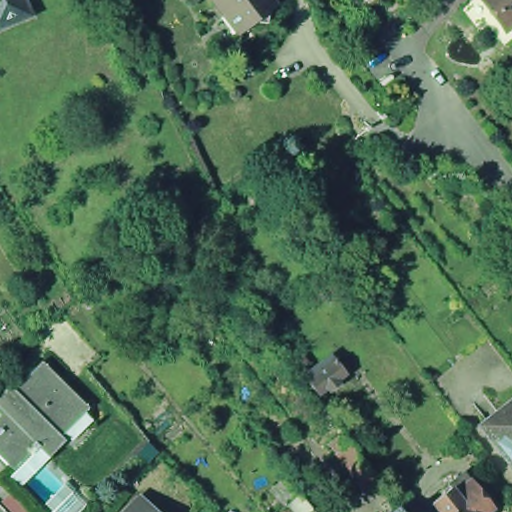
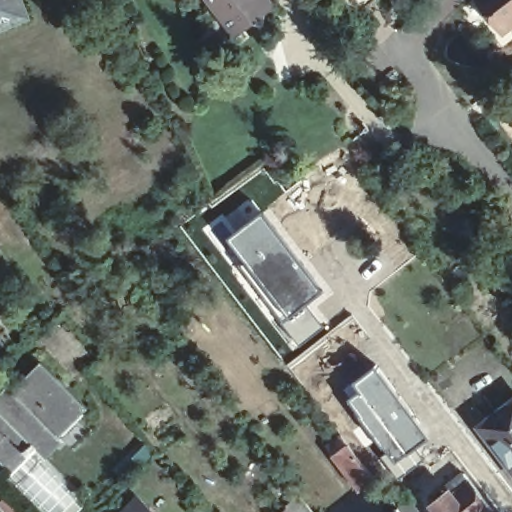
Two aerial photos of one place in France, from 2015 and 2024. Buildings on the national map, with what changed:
unchanged [(0,29),(0,0),(25,0),(32,16),(0,29)]
unchanged [(230,33),(205,0),(261,0),(258,23),(244,22),(230,33)]
unchanged [(339,0),(371,0),(352,16),(339,0)]
unchanged [(512,0),(512,24),(506,29),(483,0),(512,0)]
demolished [(122,56),(126,66),(117,69),(113,59),(122,56)]
demolished [(107,59),(114,78),(100,83),(93,65),(107,59)]
new [(298,345),(282,324),(250,280),(247,282),(233,263),(242,257),(227,237),(263,210),(330,292),(310,305),(324,324),(298,345)]
unchanged [(98,303),(86,311),(77,299),(78,298),(88,290),(98,303)]
unchanged [(317,395),(306,381),(333,359),(345,374),(317,395)]
unchanged [(41,447),(33,455),(32,454),(16,470),(0,454),(0,419),(6,413),(0,407),(0,398),(12,386),(17,391),(45,363),(91,408),(67,433),(71,438),(52,458),(41,447)]
new [(360,390),(354,382),(377,365),(432,436),(397,463),(349,398),(360,390)]
unchanged [(479,426),(512,400),(512,468),(479,426)]
unchanged [(364,492),(339,459),(340,459),(333,449),(346,439),(353,449),(378,481),(364,492)]
unchanged [(497,509),(493,512),(443,512),(436,504),(455,488),(453,485),(469,473),(497,509)]
unchanged [(36,512),(10,512),(0,502),(0,501),(12,489),(36,512)]
unchanged [(271,509),(278,503),(284,510),(287,508),(285,506),(300,494),(315,512),(274,512),(271,509)]
unchanged [(403,507),(413,499),(424,512),(396,512),(403,507)]
unchanged [(142,505),(150,512),(135,512),(142,505)]

